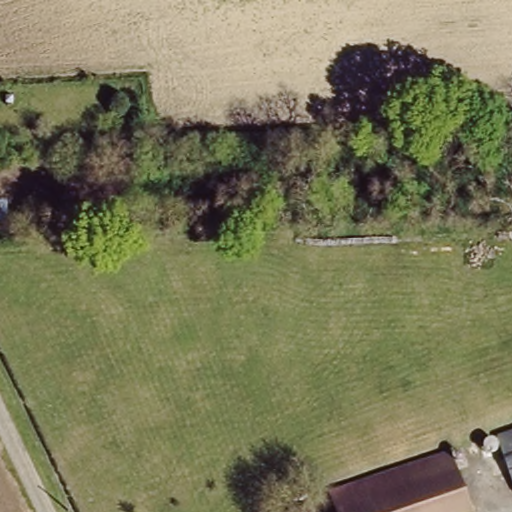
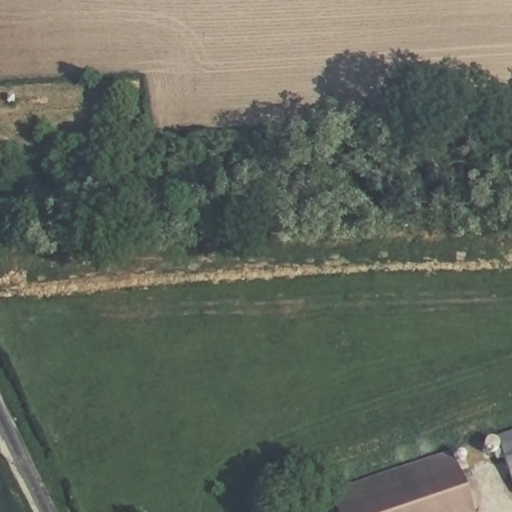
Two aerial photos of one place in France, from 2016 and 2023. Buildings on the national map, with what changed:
unchanged [(7,203),(8,223),(0,224),(0,203),(7,203)]
unchanged [(484,456),(478,437),(512,426),(512,484),(500,450),(484,456)]
unchanged [(450,458),(468,512),(334,512),(329,497),(450,458)]

